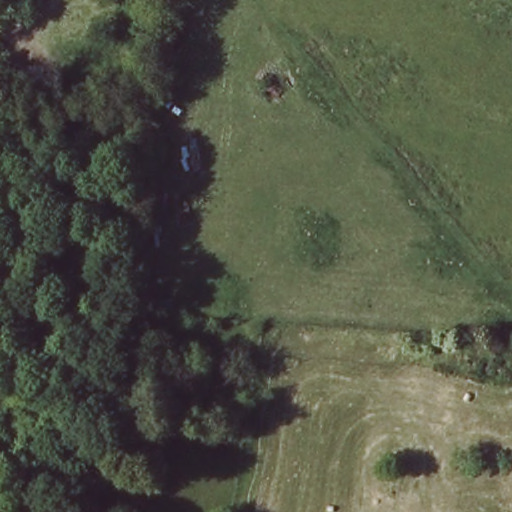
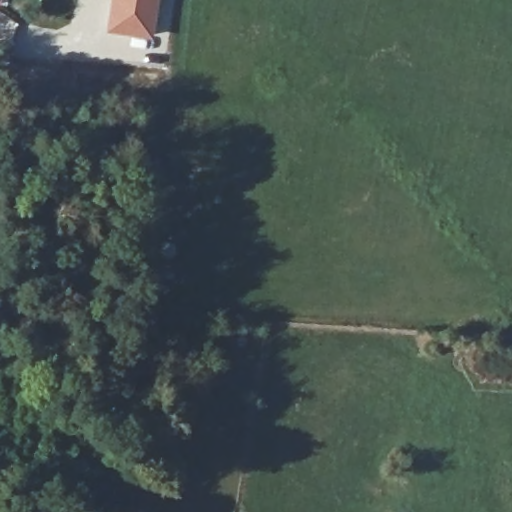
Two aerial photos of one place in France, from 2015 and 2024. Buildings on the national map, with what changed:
new [(154,40),(103,33),(108,0),(160,0),(154,40)]

